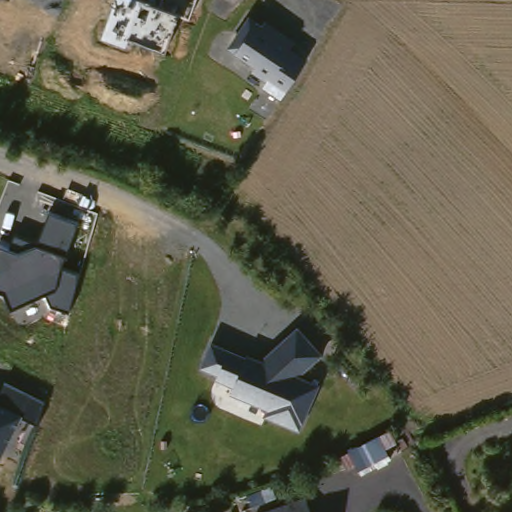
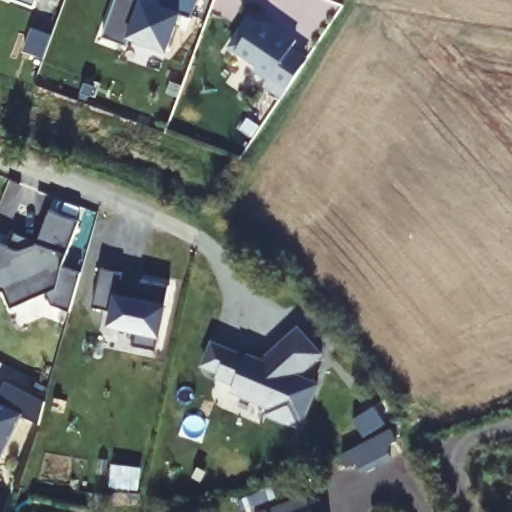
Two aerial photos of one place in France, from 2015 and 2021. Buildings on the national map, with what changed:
unchanged [(190,17),(180,14),(166,50),(132,37),(128,46),(102,37),(116,0),(144,0),(158,5),(160,0),(196,0),(190,17)]
unchanged [(283,97),(265,84),(268,80),(252,70),(255,64),(230,49),(249,17),(263,26),(266,20),(297,42),(293,50),(306,59),(283,97)]
unchanged [(79,272),(68,309),(48,301),(45,292),(11,306),(4,288),(0,287),(0,243),(21,250),(39,239),(51,209),(79,221),(63,267),(79,272)]
new [(98,279),(101,267),(122,272),(120,282),(139,287),(141,280),(169,286),(154,349),(132,344),(135,330),(109,324),(112,311),(92,306),(98,279)]
unchanged [(302,373),(319,381),(301,431),(265,417),(267,409),(229,393),(232,385),(216,377),(218,372),(203,366),(214,339),(262,360),(298,326),(322,354),(302,373)]
unchanged [(22,414),(0,456),(0,387),(4,379),(47,402),(38,423),(22,414)]
unchanged [(395,441),(389,447),(395,458),(365,473),(352,465),(346,465),(339,455),(390,429),(395,441)]
unchanged [(311,512),(271,512),(305,497),(311,512)]

